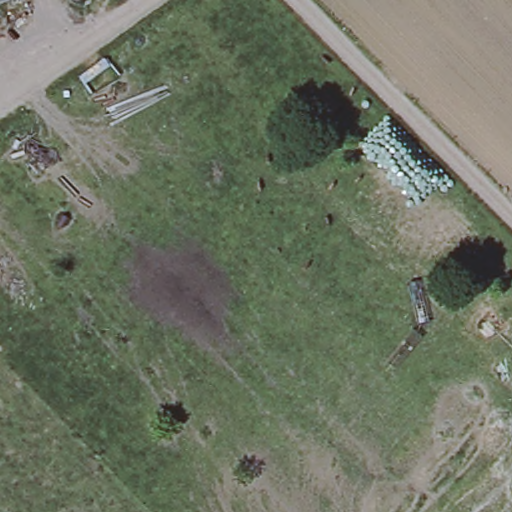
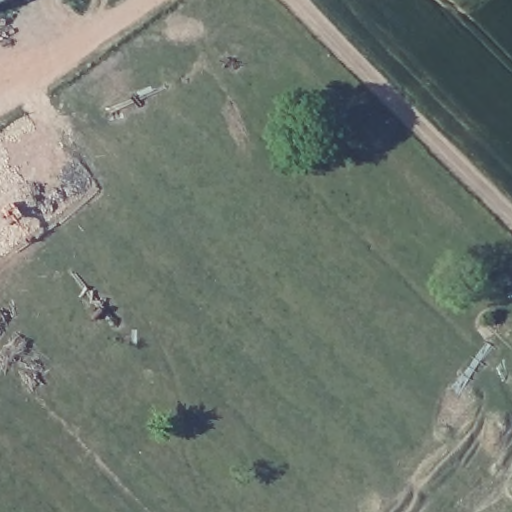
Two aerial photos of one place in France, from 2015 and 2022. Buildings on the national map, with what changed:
unchanged [(14,0),(0,6),(0,0),(14,0)]

